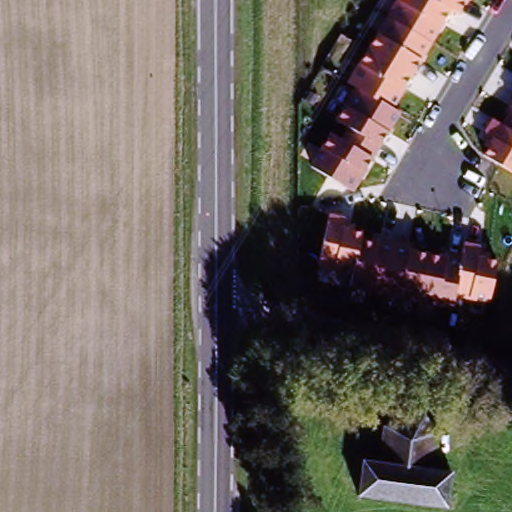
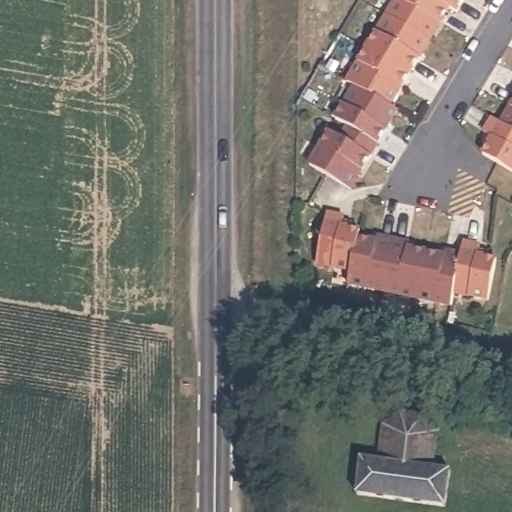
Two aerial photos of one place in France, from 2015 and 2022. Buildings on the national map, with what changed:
unchanged [(330,131),(338,136),(344,126),(336,120),(345,106),(351,109),(361,91),(347,82),(398,0),(466,0),(458,14),(449,9),(392,107),(399,111),(353,191),(311,162),(330,131)]
unchanged [(483,151),(491,136),(484,132),(492,118),(501,123),(512,104),(512,171),(483,151)]
unchanged [(344,216),(343,222),(362,226),(360,239),(408,249),(409,245),(460,255),(462,241),(482,245),(481,256),(497,260),(489,306),(453,298),(452,307),(351,283),(353,274),(318,266),(332,214),(344,216)]
unchanged [(360,494),(363,456),(383,458),(387,424),(404,408),(422,411),(438,431),(434,465),(452,467),(448,502),(360,494)]

